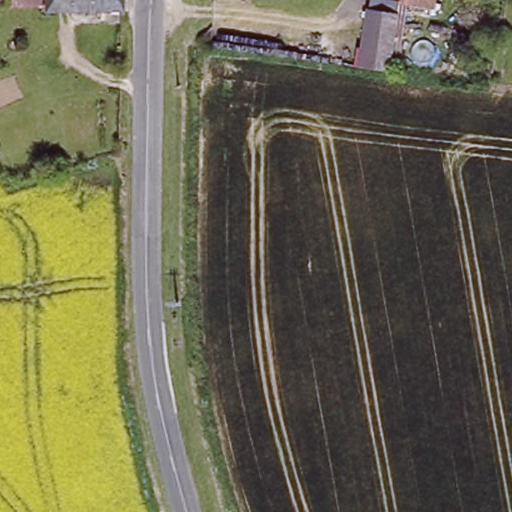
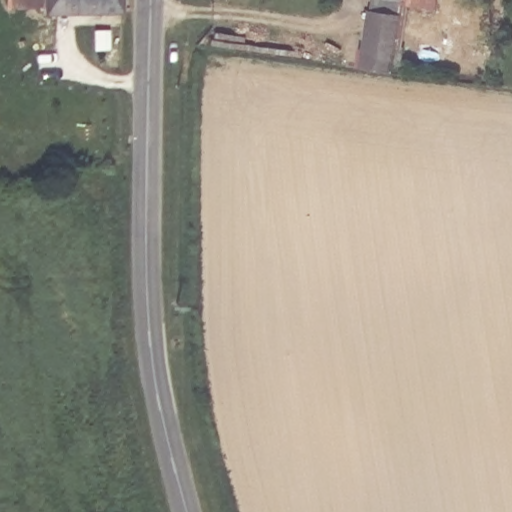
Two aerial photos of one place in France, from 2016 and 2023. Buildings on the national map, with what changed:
unchanged [(3,0),(122,0),(121,11),(42,10),(42,4),(3,3),(3,0)]
unchanged [(442,1),(440,0),(442,0),(442,1)]
unchanged [(366,12),(397,15),(389,68),(359,64),(366,12)]

